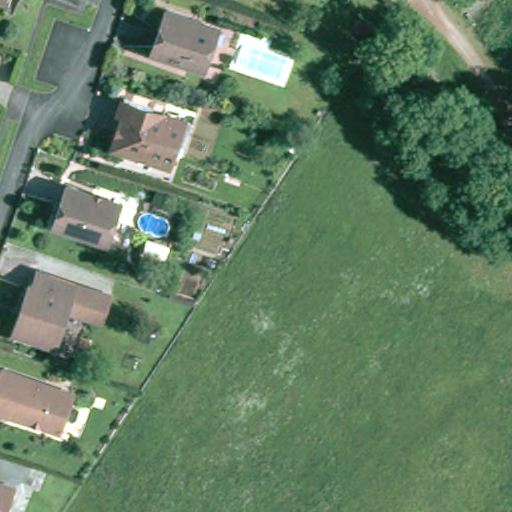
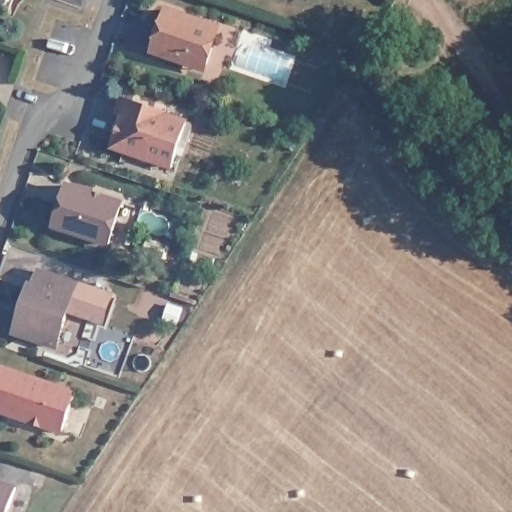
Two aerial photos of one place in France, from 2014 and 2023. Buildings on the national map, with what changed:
unchanged [(214,27),(208,42),(213,51),(207,64),(183,56),(181,61),(152,51),(167,10),(214,27)]
unchanged [(172,166),(114,145),(131,100),(153,107),(166,111),(164,115),(188,122),(172,166)]
unchanged [(121,205),(108,244),(53,225),(68,185),(121,205)]
unchanged [(26,305),(34,283),(38,285),(44,271),(114,297),(105,322),(71,310),(58,345),(23,332),(32,306),(26,305)]
unchanged [(0,413),(0,370),(6,372),(79,398),(66,436),(0,413)]
unchanged [(7,512),(0,512),(0,482),(15,487),(7,512)]

